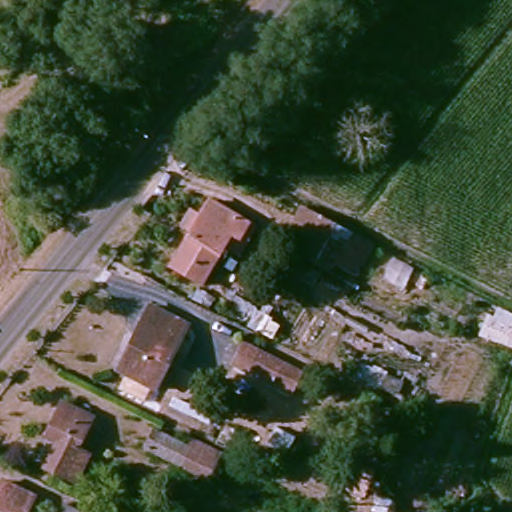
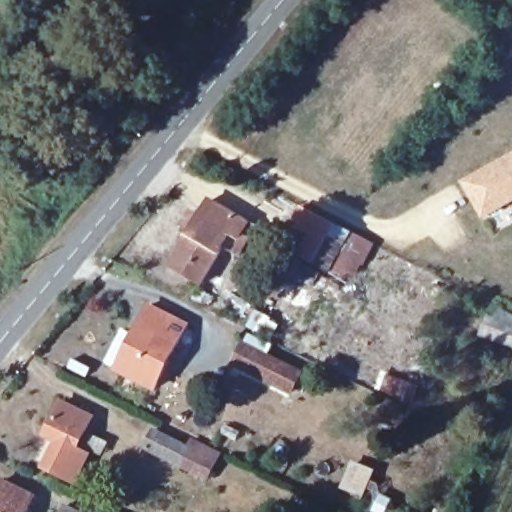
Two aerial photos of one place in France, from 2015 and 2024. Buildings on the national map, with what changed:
new [(512,204),(483,220),(462,180),(512,152),(512,204)]
unchanged [(215,198),(251,220),(245,234),(236,229),(205,278),(176,260),(215,198)]
unchanged [(350,224),(329,266),(305,253),(316,229),(295,220),(305,201),(350,224)]
unchanged [(350,224),(378,238),(356,279),(329,266),(350,224)]
unchanged [(189,324),(157,387),(121,369),(154,306),(189,324)]
new [(512,348),(478,337),(486,314),(495,317),(497,308),(512,314),(512,348)]
unchanged [(306,373),(297,390),(236,360),(245,343),(306,373)]
unchanged [(65,399),(96,414),(82,444),(95,450),(82,478),(50,463),(62,437),(50,431),(65,399)]
unchanged [(225,456),(215,476),(147,444),(160,423),(225,456)]
unchanged [(38,488),(27,512),(0,512),(0,482),(5,472),(38,488)]
unchanged [(95,512),(63,512),(68,501),(95,512)]

